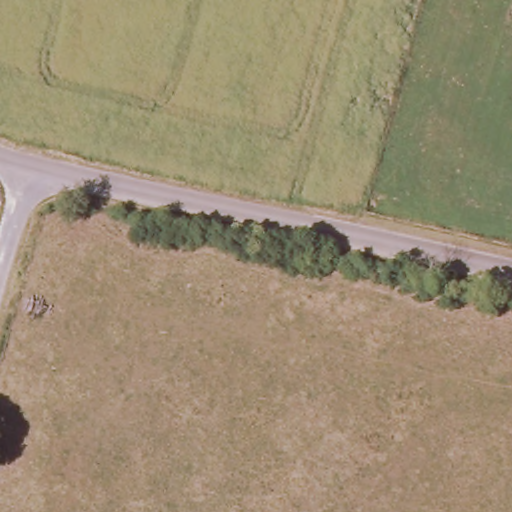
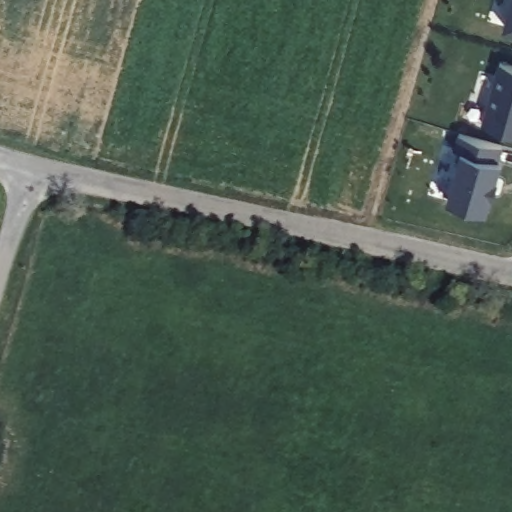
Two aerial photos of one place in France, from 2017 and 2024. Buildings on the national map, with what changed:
new [(504,25),(510,0),(512,0),(512,27),(504,25)]
new [(481,122),(499,60),(512,63),(512,131),(481,122)]
new [(457,132),(501,144),(497,157),(499,159),(495,176),(497,177),(492,193),(490,192),(485,210),(446,199),(460,149),(453,147),(457,132)]

